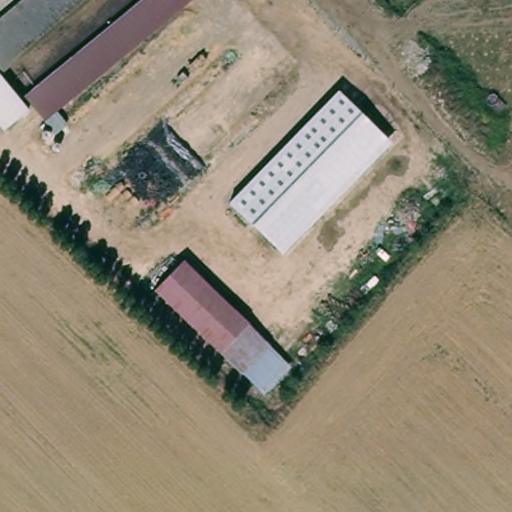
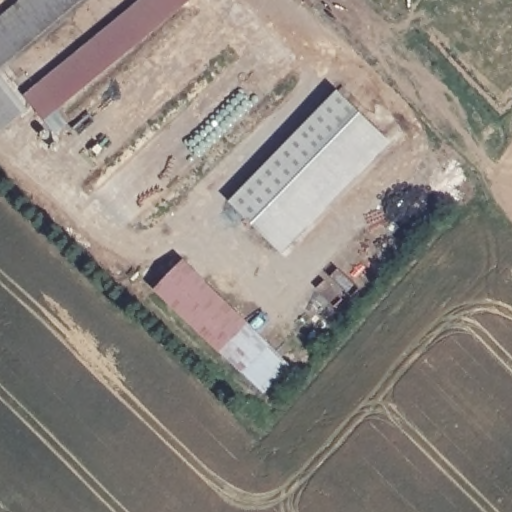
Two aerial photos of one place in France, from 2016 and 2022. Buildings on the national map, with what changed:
unchanged [(0,64),(0,19),(22,0),(83,0),(73,8),(3,67),(0,64)]
unchanged [(67,123),(54,134),(23,96),(141,0),(190,0),(57,110),(67,123)]
unchanged [(3,67),(0,70),(0,64),(3,67)]
unchanged [(27,111),(2,130),(0,127),(0,75),(27,111)]
unchanged [(390,142),(281,254),(228,203),(336,91),(390,142)]
unchanged [(272,345),(244,374),(154,290),(182,259),(272,345)]

